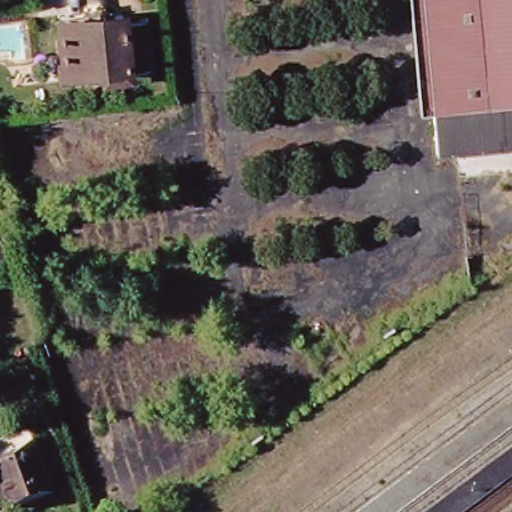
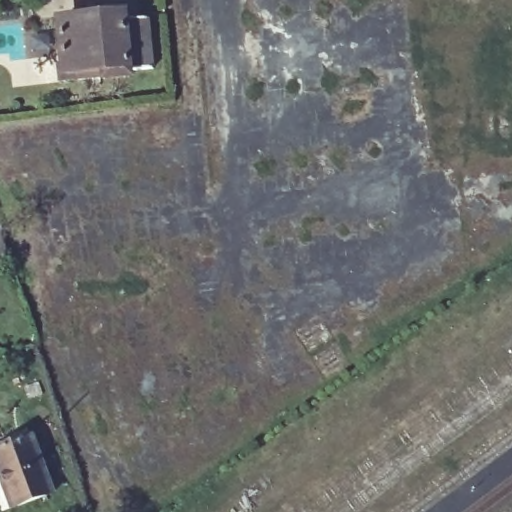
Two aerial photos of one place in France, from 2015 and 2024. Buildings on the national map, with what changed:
demolished [(453,169),(451,138),(430,139),(425,46),(412,47),(410,10),(422,9),(421,0),(512,0),(512,165),(453,169)]
unchanged [(117,13),(117,20),(143,19),(145,63),(124,66),(124,71),(50,78),(49,66),(57,65),(54,17),(79,15),(79,4),(93,2),(94,13),(117,13)]
unchanged [(0,259),(0,251),(2,258),(0,259)]
unchanged [(12,504),(0,471),(0,451),(30,440),(48,491),(12,504)]

